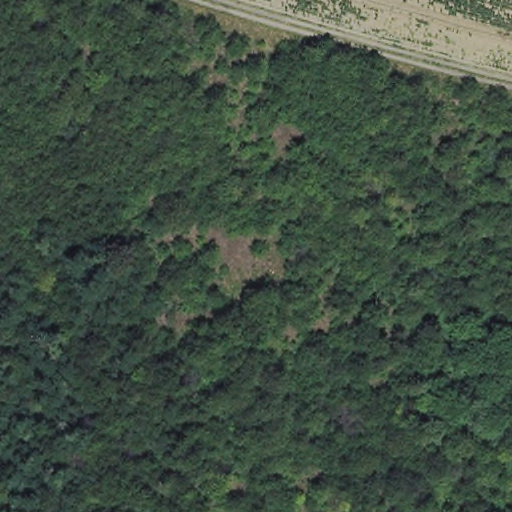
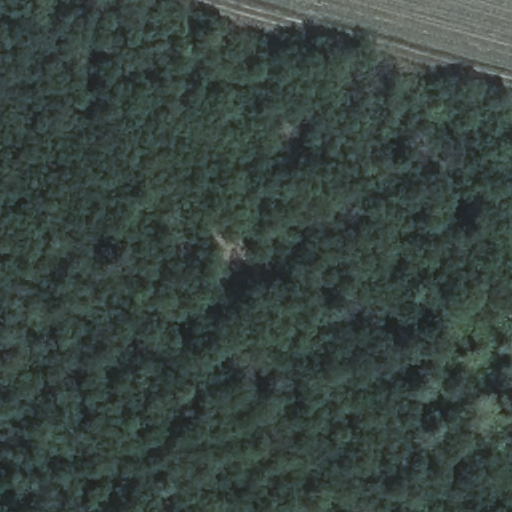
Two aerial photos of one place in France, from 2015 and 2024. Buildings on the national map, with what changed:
[]

